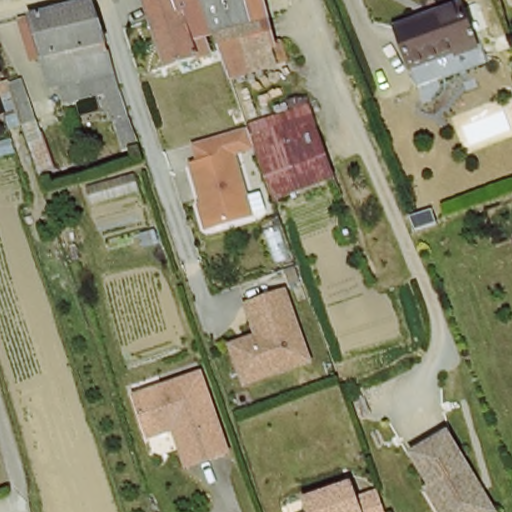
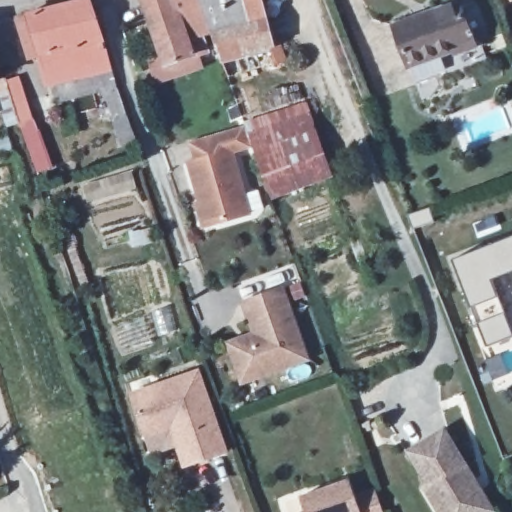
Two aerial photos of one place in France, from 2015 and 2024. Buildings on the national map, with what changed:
unchanged [(31,13),(38,11),(84,0),(91,0),(92,1),(104,38),(44,54),(31,13)]
unchanged [(210,51),(168,63),(147,0),(201,0),(213,31),(205,34),(210,51)]
unchanged [(278,37),(287,60),(230,77),(213,31),(201,0),(261,0),(269,40),(278,37)]
unchanged [(480,47),(413,67),(402,28),(470,10),(480,47)]
unchanged [(104,38),(108,50),(110,55),(114,69),(99,72),(53,83),(44,54),(104,38)]
unchanged [(114,69),(120,85),(121,87),(139,141),(126,146),(99,72),(114,69)]
unchanged [(21,90),(30,117),(18,121),(13,107),(0,111),(0,77),(3,77),(4,80),(16,77),(21,90)]
unchanged [(300,107),(325,179),(270,198),(250,142),(244,127),(300,107)]
unchanged [(250,142),(228,150),(247,215),(204,226),(186,162),(195,160),(190,143),(244,127),(250,142)]
new [(491,281),(498,298),(494,299),(512,336),(512,337),(485,348),(468,307),(452,264),(512,239),(512,273),(491,281)]
unchanged [(255,335),(245,303),(284,289),(309,360),(243,383),(232,353),(229,343),(255,335)]
unchanged [(173,426),(146,435),(132,393),(199,371),(226,452),(194,462),(186,465),(173,426)]
unchanged [(431,490),(435,488),(419,454),(456,435),(482,488),(486,497),(493,512),(441,512),(431,490)]
unchanged [(324,511),(319,496),(350,485),(356,501),(375,493),(381,510),(382,512),(323,512),(324,511)]

